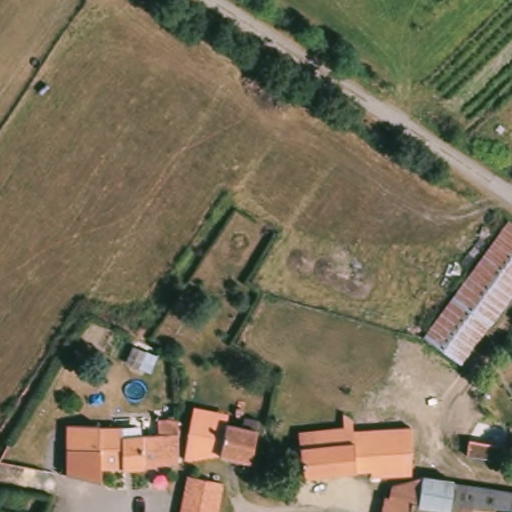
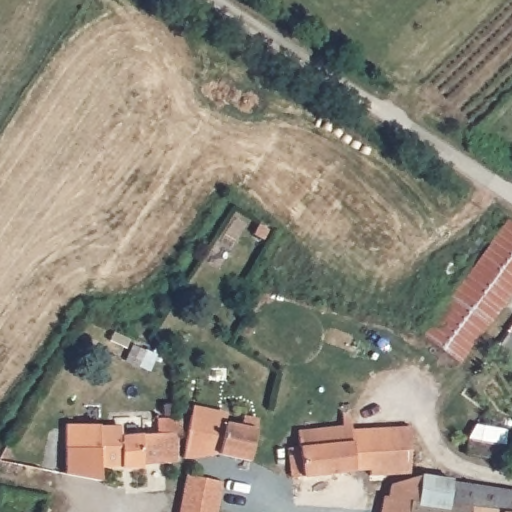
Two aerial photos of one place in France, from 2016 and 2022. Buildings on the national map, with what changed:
unchanged [(460,364),(449,355),(424,337),(508,221),(512,223),(512,293),(460,364)]
unchanged [(249,460),(218,454),(187,458),(186,456),(185,458),(183,458),(190,415),(192,405),(227,413),(225,423),(256,429),(249,460)]
unchanged [(292,478),(291,467),(290,467),(287,448),(298,447),(297,432),(343,427),(342,412),(351,418),(352,442),(353,441),(355,471),(292,478)]
unchanged [(175,462),(164,463),(99,467),(100,481),(99,481),(72,476),(66,475),(67,448),(67,424),(101,424),(101,427),(121,427),(121,437),(157,434),(157,420),(177,419),(176,462),(175,462)]
unchanged [(409,473),(370,475),(371,445),(390,444),(389,428),(412,427),(412,443),(410,443),(409,473)]
unchanged [(502,460),(466,454),(468,439),(504,445),(502,460)]
unchanged [(384,496),(391,497),(392,484),(422,475),(416,502),(413,512),(381,512),(384,496)]
unchanged [(471,509),(416,502),(422,475),(452,480),(451,483),(505,490),(512,491),(512,512),(497,512),(471,509)]
unchanged [(217,512),(180,512),(187,480),(190,480),(222,487),(217,512)]
unchanged [(0,488),(51,496),(43,512),(0,512),(0,488)]
unchanged [(416,502),(471,509),(497,512),(413,512),(416,502)]

